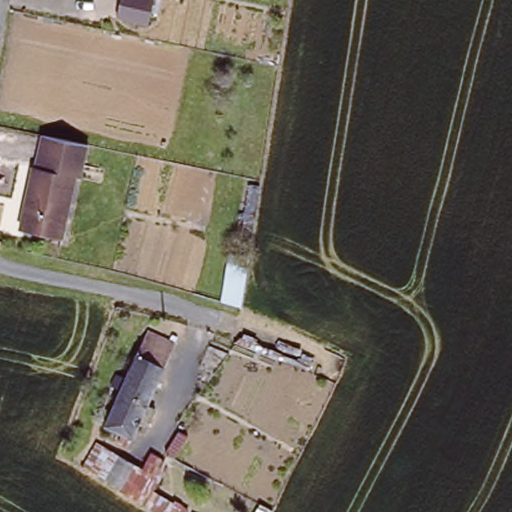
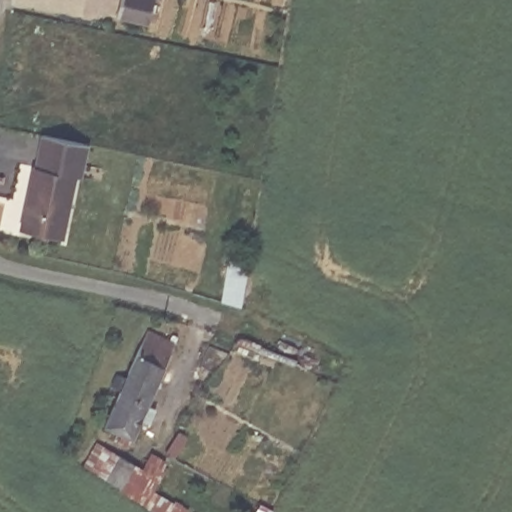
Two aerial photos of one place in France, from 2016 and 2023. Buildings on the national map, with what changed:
unchanged [(114,19),(118,0),(151,0),(146,25),(114,19)]
unchanged [(91,141),(86,170),(78,169),(68,233),(23,224),(43,131),(91,141)]
unchanged [(116,436),(119,429),(103,420),(119,386),(109,381),(115,369),(124,373),(148,326),(176,339),(146,401),(154,404),(148,418),(140,414),(131,434),(127,441),(116,436)]
unchanged [(141,474),(143,468),(160,478),(148,499),(171,512),(174,505),(180,508),(178,512),(152,512),(91,473),(104,451),(141,474)]
unchanged [(260,503),(274,510),(273,512),(255,512),(260,503)]

